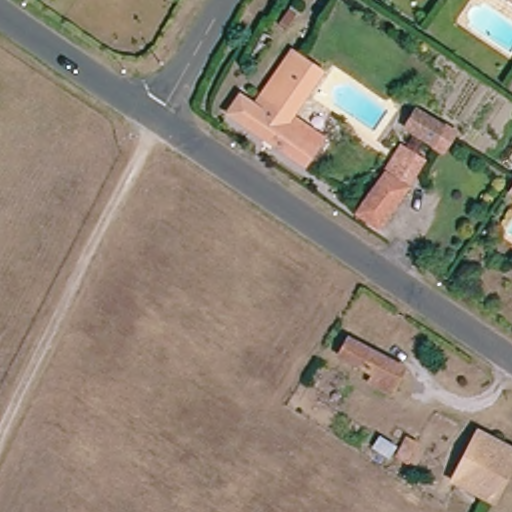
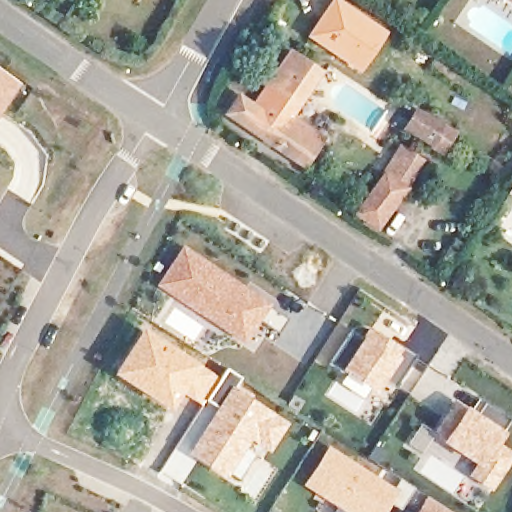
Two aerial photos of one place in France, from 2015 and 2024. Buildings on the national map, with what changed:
new [(330,0),(341,0),(388,32),(359,73),(306,36),(330,0)]
unchanged [(510,3),(505,0),(512,0),(510,3)]
unchanged [(222,115),(232,99),(248,110),(285,57),(311,74),(281,118),(315,141),(298,167),(222,115)]
new [(16,85),(0,108),(0,75),(16,85)]
unchanged [(436,147),(404,124),(400,121),(412,104),(417,107),(448,130),(436,147)]
unchanged [(351,205),(381,163),(394,145),(416,161),(403,179),(374,221),(351,205)]
unchanged [(512,186),(512,205),(504,199),(512,186)]
new [(158,285),(183,245),(273,305),(271,307),(290,320),(280,333),(262,321),(247,344),(158,285)]
new [(113,375),(142,329),(200,367),(221,381),(209,401),(204,398),(200,405),(182,393),(171,412),(113,375)]
unchanged [(404,369),(391,396),(368,383),(372,376),(337,357),(348,338),(404,369)]
new [(245,378),(236,391),(288,425),(272,448),(253,437),(229,474),(195,452),(215,421),(220,414),(223,410),(209,401),(230,368),(245,378)]
unchanged [(512,451),(512,462),(492,503),(452,482),(477,432),(512,451)]
new [(384,512),(355,512),(312,484),(333,452),(395,492),(403,480),(418,490),(404,511),(390,502),(384,512)]
new [(452,512),(422,512),(431,498),(452,512)]

